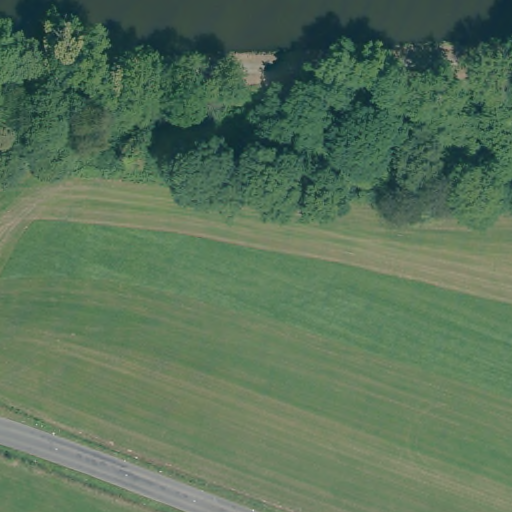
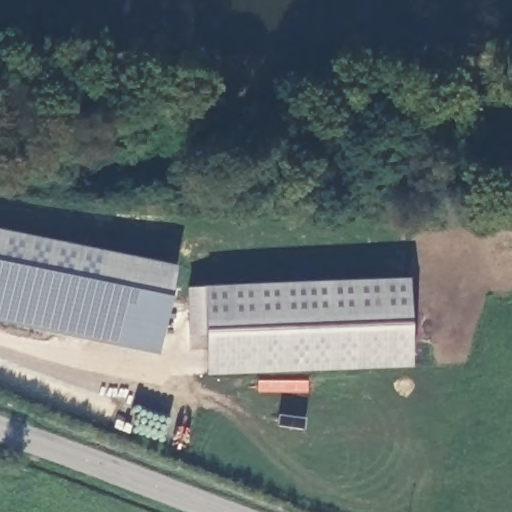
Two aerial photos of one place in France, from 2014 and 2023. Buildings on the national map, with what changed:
new [(157,352),(0,321),(0,229),(177,265),(157,352)]
new [(412,366),(206,374),(204,334),(188,334),(186,286),(202,285),(408,277),(412,366)]

